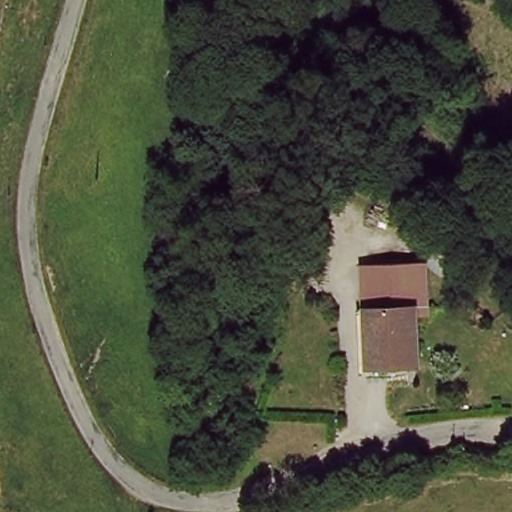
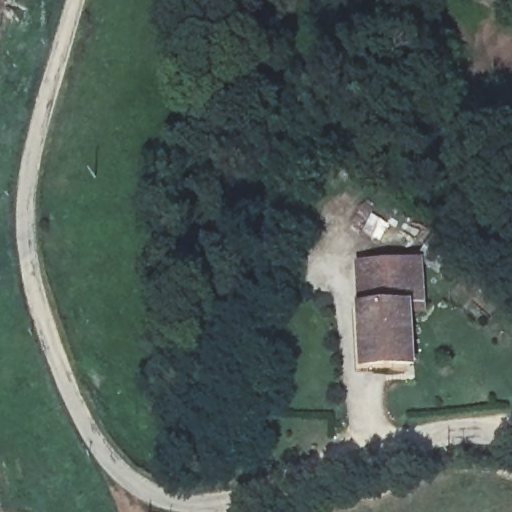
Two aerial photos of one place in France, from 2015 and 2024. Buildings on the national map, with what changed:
unchanged [(425,260),(427,303),(409,304),(409,311),(365,311),(364,264),(425,260)]
unchanged [(409,311),(410,372),(365,372),(365,311),(409,311)]

